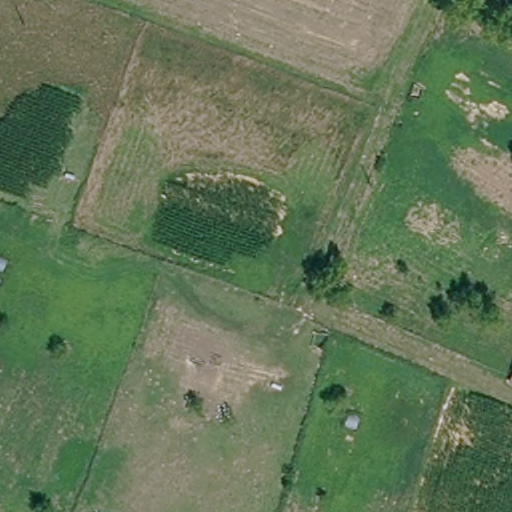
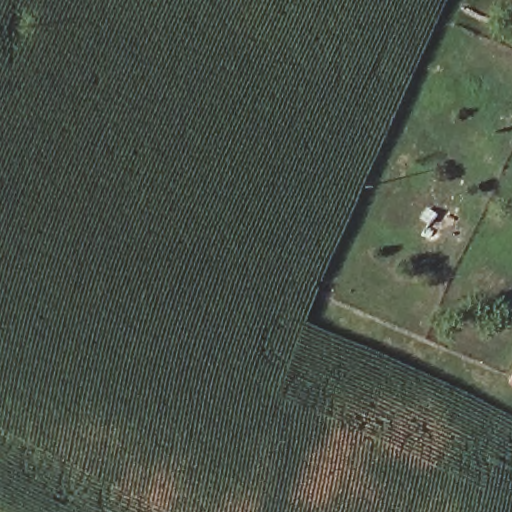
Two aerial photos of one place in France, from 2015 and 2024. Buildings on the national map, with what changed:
unchanged [(512,383),(512,387),(510,386),(512,383)]

